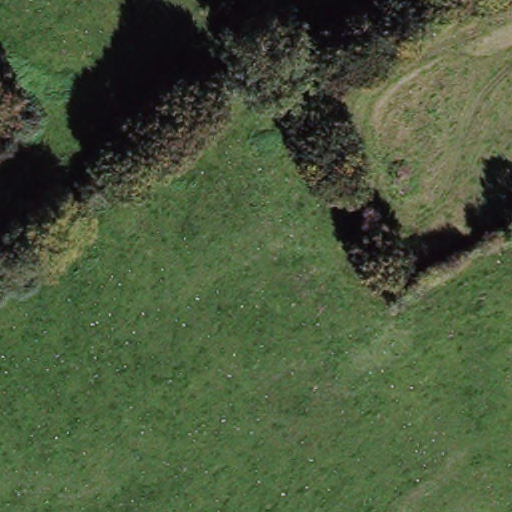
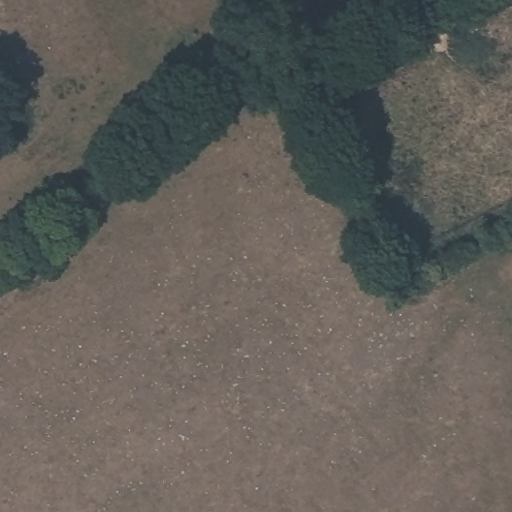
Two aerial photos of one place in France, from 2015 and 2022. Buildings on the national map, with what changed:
[]

